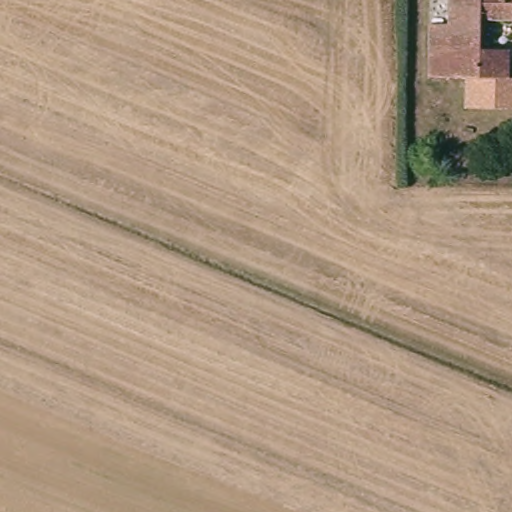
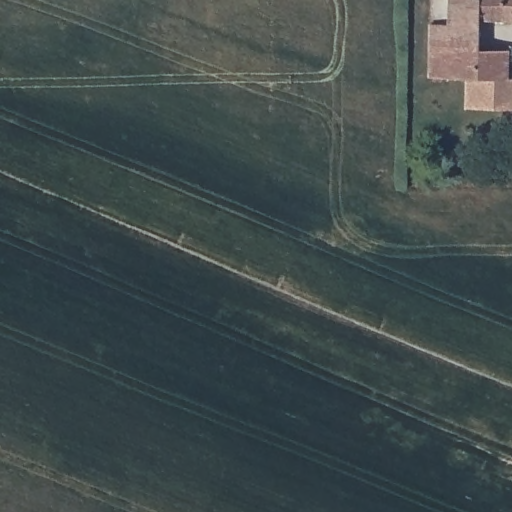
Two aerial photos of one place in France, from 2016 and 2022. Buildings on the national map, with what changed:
unchanged [(512,74),(512,105),(471,106),(470,76),(429,78),(428,24),(445,25),(444,0),(512,0),(512,15),(481,16),(481,46),(482,75),(512,74)]
unchanged [(482,75),(481,46),(512,45),(512,74),(482,75)]

